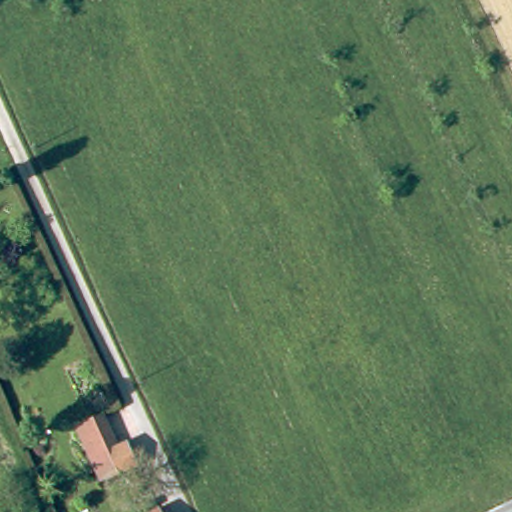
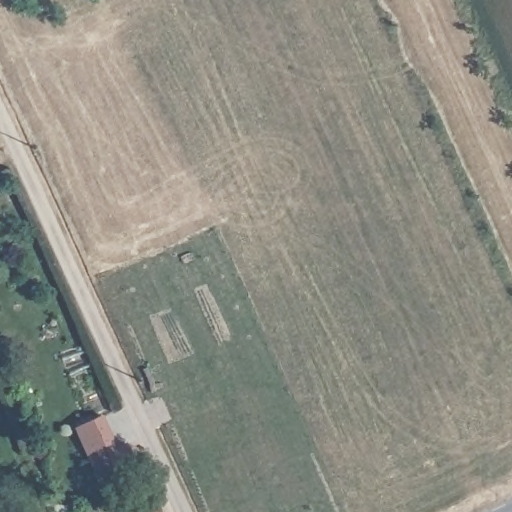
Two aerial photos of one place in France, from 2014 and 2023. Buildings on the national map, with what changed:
unchanged [(125,459),(108,468),(97,445),(114,436),(125,459)]

